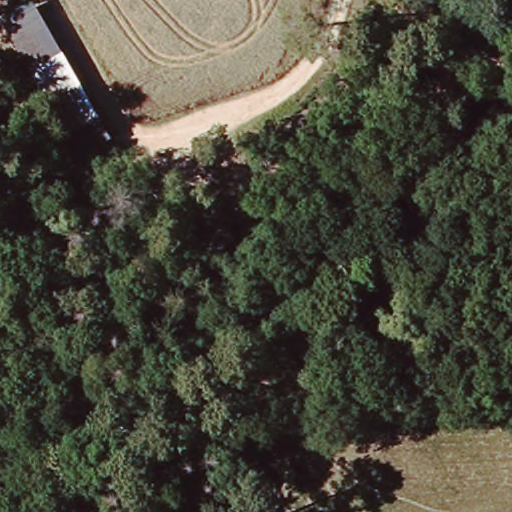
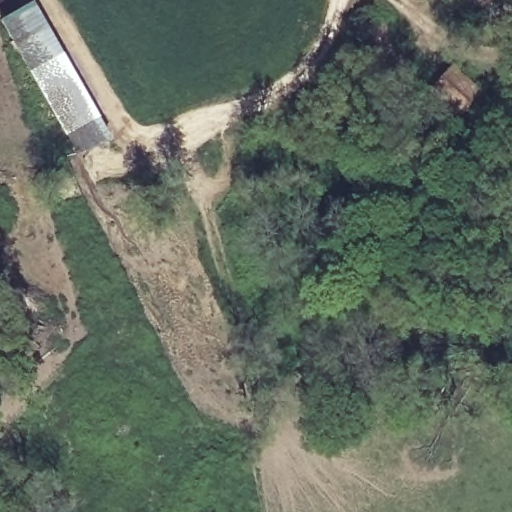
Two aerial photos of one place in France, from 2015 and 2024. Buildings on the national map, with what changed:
unchanged [(35,1),(113,137),(77,159),(0,15),(35,1)]

